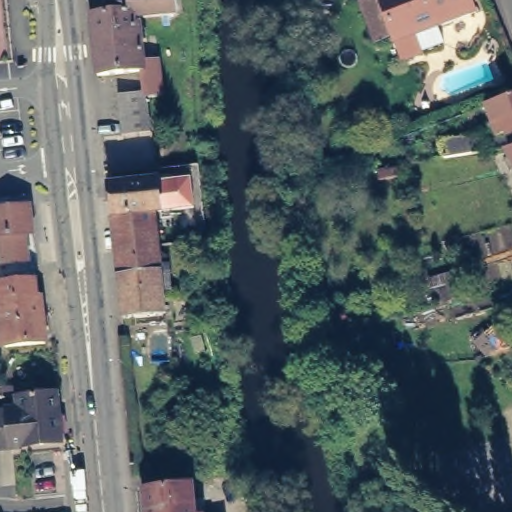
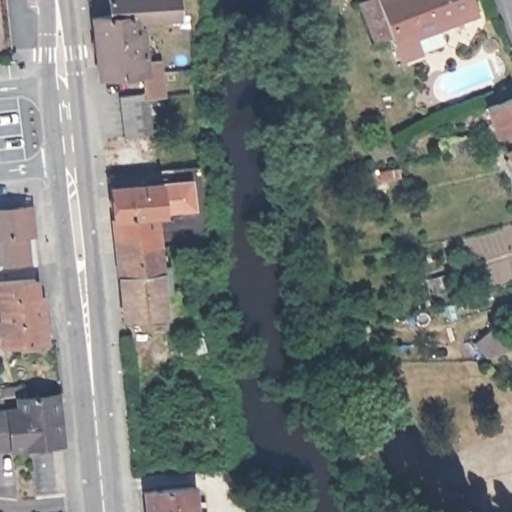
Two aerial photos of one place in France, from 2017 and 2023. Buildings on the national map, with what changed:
unchanged [(134,10),(111,12),(111,0),(177,0),(178,12),(164,14),(135,16),(134,10)]
unchanged [(314,7),(313,0),(334,0),(334,6),(314,7)]
unchanged [(469,0),(472,7),(436,22),(442,41),(399,58),(389,31),(371,37),(356,0),(469,0)]
unchanged [(125,132),(123,106),(120,92),(145,89),(143,70),(101,74),(93,14),(111,12),(134,10),(135,16),(136,25),(142,25),(146,57),(160,56),(164,91),(149,94),(150,102),(153,128),(125,132)]
unchanged [(509,129),(499,131),(487,101),(512,92),(512,131),(511,131),(509,129)]
unchanged [(446,157),(444,140),(484,135),(486,150),(446,157)]
unchanged [(512,139),(512,164),(499,142),(512,139)]
unchanged [(103,182),(182,176),(184,195),(176,196),(178,205),(146,208),(148,224),(161,222),(163,240),(149,241),(152,260),(151,261),(151,265),(111,270),(103,182)]
unchanged [(402,181),(404,192),(383,196),(381,185),(402,181)]
unchanged [(30,258),(0,261),(0,254),(1,254),(0,244),(0,208),(26,205),(30,258)]
unchanged [(1,254),(0,254),(0,244),(1,254)]
unchanged [(151,265),(151,261),(152,260),(158,310),(116,312),(111,270),(151,265)]
unchanged [(32,272),(24,273),(23,264),(31,263),(32,272)]
unchanged [(19,273),(11,274),(10,265),(18,264),(19,273)]
unchanged [(36,277),(37,285),(38,294),(41,294),(45,340),(6,343),(4,330),(0,331),(0,318),(3,317),(1,298),(0,298),(0,280),(36,277)]
unchanged [(439,320),(436,308),(463,300),(467,313),(439,320)]
unchanged [(510,365),(491,370),(480,355),(493,343),(510,365)]
unchanged [(0,449),(0,412),(21,410),(20,399),(58,395),(63,442),(0,449)]
unchanged [(140,488),(189,483),(191,498),(196,498),(196,504),(198,510),(193,510),(193,512),(143,512),(140,488)]

